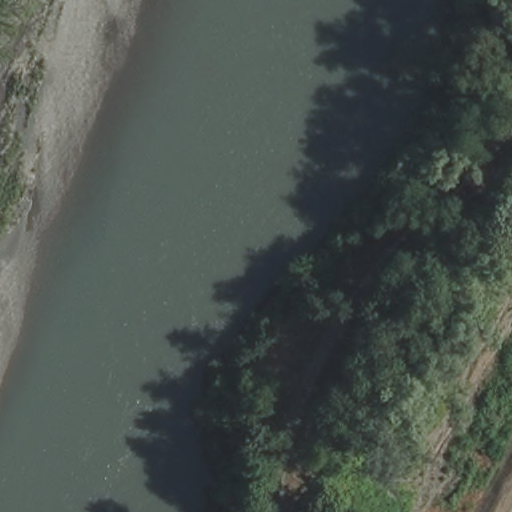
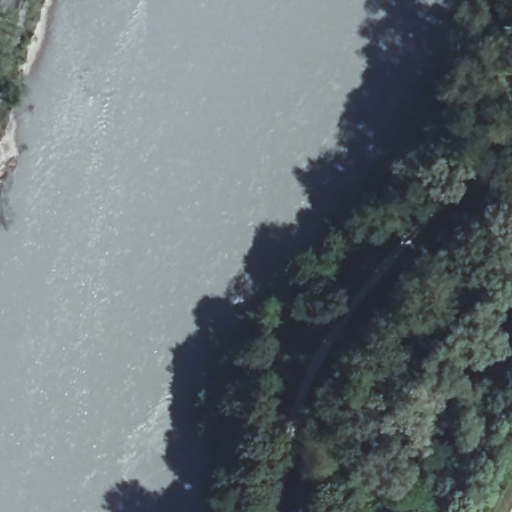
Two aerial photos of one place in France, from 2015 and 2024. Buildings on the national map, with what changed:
[]

